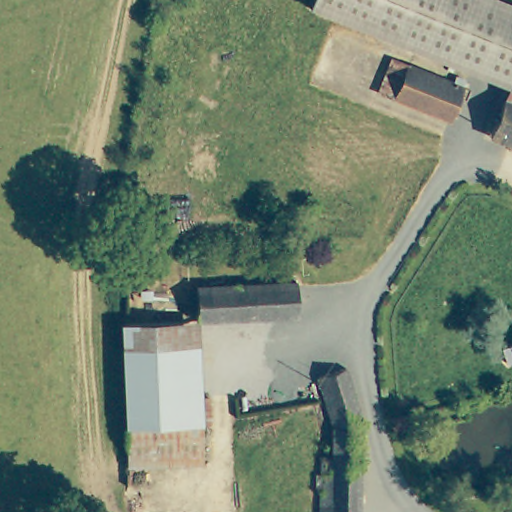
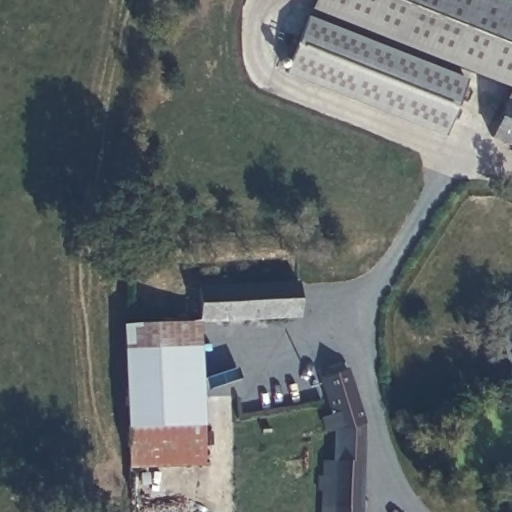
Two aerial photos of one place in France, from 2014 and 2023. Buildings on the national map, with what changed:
unchanged [(512,100),(505,97),(511,84),(355,22),(311,4),(313,0),(508,0),(512,1),(512,100)]
new [(442,137),(283,75),(307,16),(466,79),(442,137)]
demolished [(395,102),(409,68),(454,86),(457,79),(465,82),(449,123),(395,102)]
unchanged [(512,143),(490,134),(505,97),(512,100),(512,143)]
unchanged [(300,282),(301,314),(281,315),(248,316),(196,318),(196,284),(300,282)]
unchanged [(196,318),(199,416),(130,418),(128,317),(196,318)]
unchanged [(346,370),(363,440),(364,512),(326,512),(327,492),(319,491),(321,472),(331,473),(332,460),(336,460),(324,373),(346,370)]
unchanged [(199,416),(200,463),(131,466),(130,418),(199,416)]

